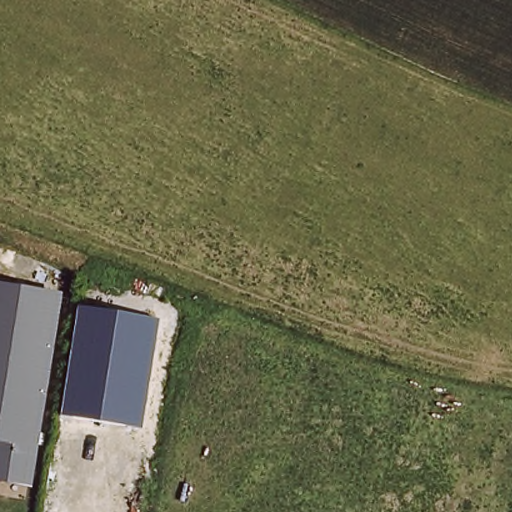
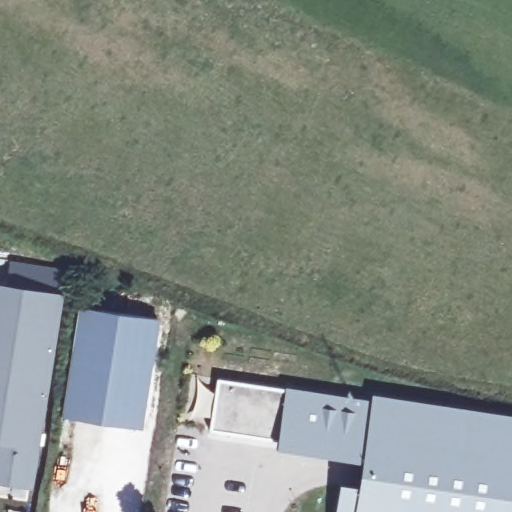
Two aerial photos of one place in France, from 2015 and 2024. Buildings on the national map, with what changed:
unchanged [(60,298),(30,484),(0,479),(0,288),(60,298)]
unchanged [(78,306),(160,318),(141,430),(60,417),(78,306)]
new [(285,388),(370,401),(372,393),(512,416),(512,512),(336,512),(340,484),(358,487),(362,461),(275,448),(277,438),(210,431),(217,378),(285,388)]

